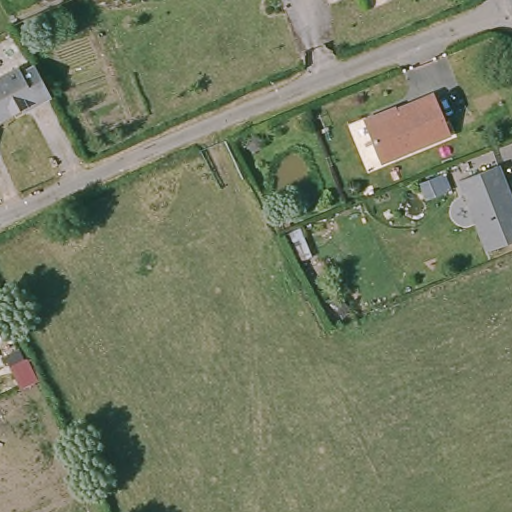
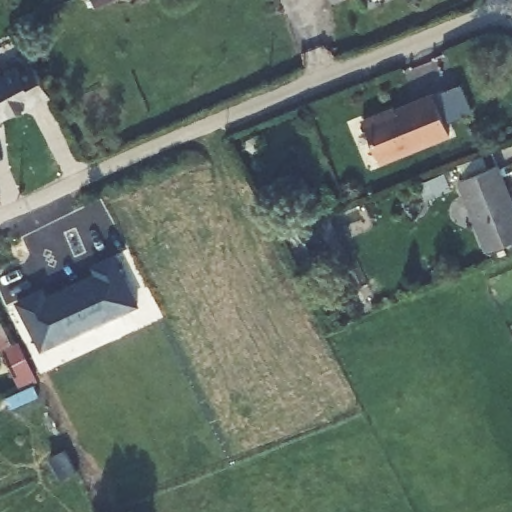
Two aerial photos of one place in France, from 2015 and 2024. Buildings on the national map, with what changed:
unchanged [(55,94),(32,105),(30,103),(0,117),(0,73),(19,64),(22,70),(38,62),(55,94)]
unchanged [(382,114),(385,116),(436,97),(450,138),(380,164),(365,122),(382,114)]
unchanged [(512,193),(512,239),(487,248),(462,181),(502,166),(512,193)]
new [(18,299),(45,286),(49,293),(97,270),(94,264),(115,254),(141,305),(43,348),(18,299)]
unchanged [(5,357),(18,351),(27,368),(13,374),(5,357)]

